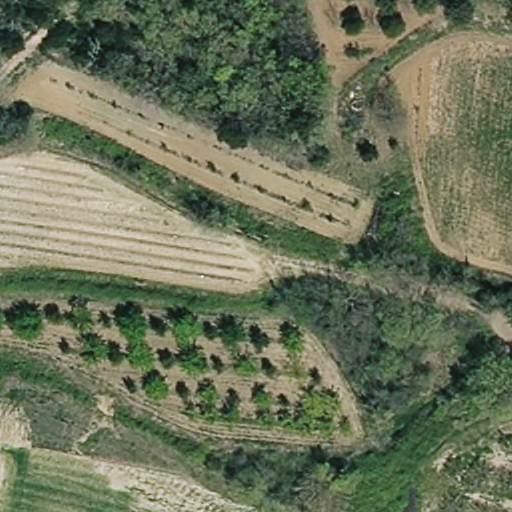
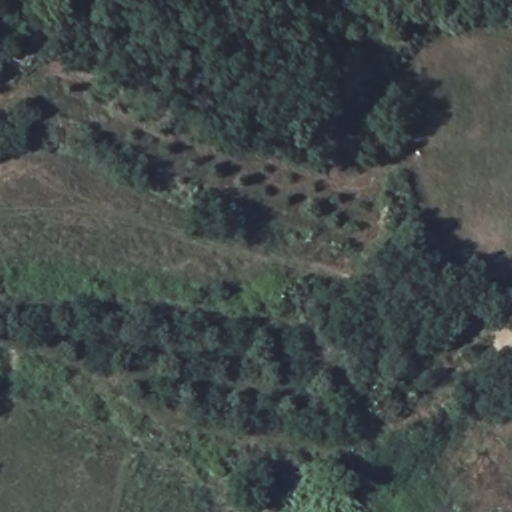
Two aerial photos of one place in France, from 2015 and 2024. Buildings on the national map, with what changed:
[]

